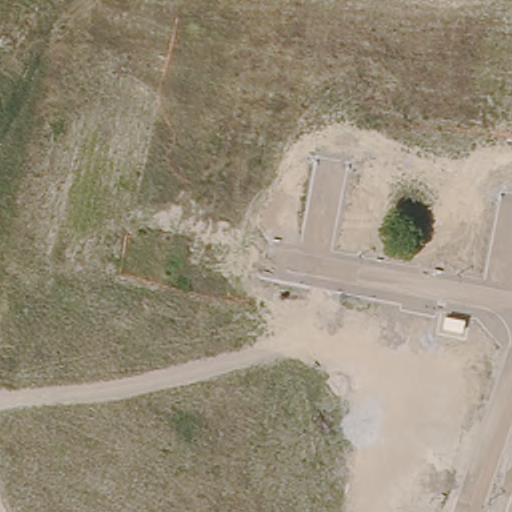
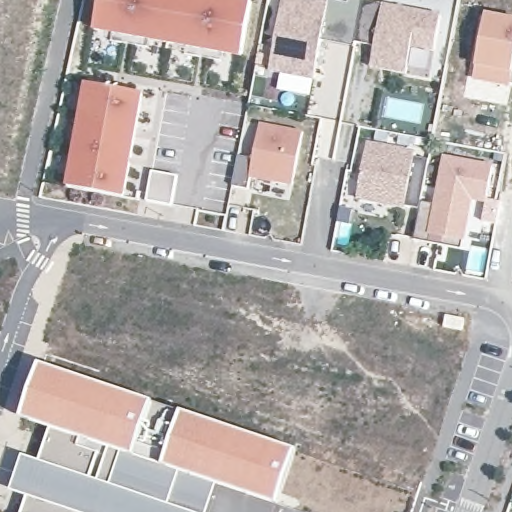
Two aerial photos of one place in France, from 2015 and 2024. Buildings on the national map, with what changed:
new [(95,29),(101,0),(223,0),(250,5),(240,56),(95,29)]
new [(283,0),(301,0),(327,5),(328,0),(347,3),(348,0),(363,0),(363,2),(355,43),(354,48),(321,42),(313,81),(270,73),(283,0)]
unchanged [(406,75),(370,68),(375,47),(355,43),(363,2),(440,17),(434,52),(429,79),(406,75)]
new [(512,22),(512,86),(473,79),(485,16),(512,22)]
new [(87,83),(143,93),(123,197),(68,186),(87,83)]
new [(238,157),(253,160),(259,125),(302,133),(292,186),(250,178),(248,191),(232,188),(238,157)]
unchanged [(366,145),(415,154),(414,158),(428,161),(421,202),(420,210),(356,198),(366,145)]
new [(442,246),(414,240),(420,210),(421,202),(436,205),(445,158),(492,167),(486,202),(471,199),(463,241),(461,249),(442,246)]
new [(152,171),(177,176),(172,206),(146,201),(152,171)]
new [(11,492),(23,455),(40,461),(49,427),(21,419),(40,363),(152,401),(181,410),(297,451),(280,505),(212,482),(205,512),(22,512),(27,496),(11,492)]

